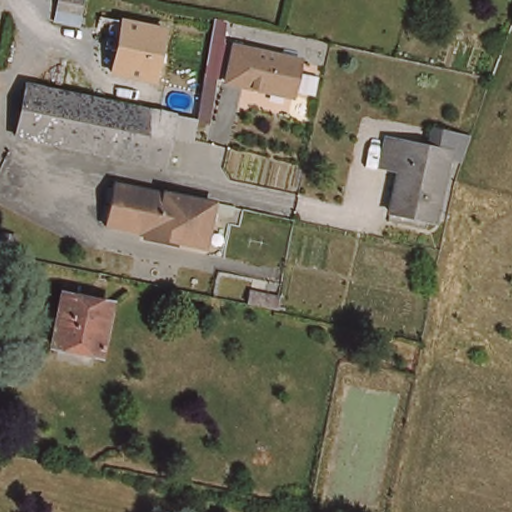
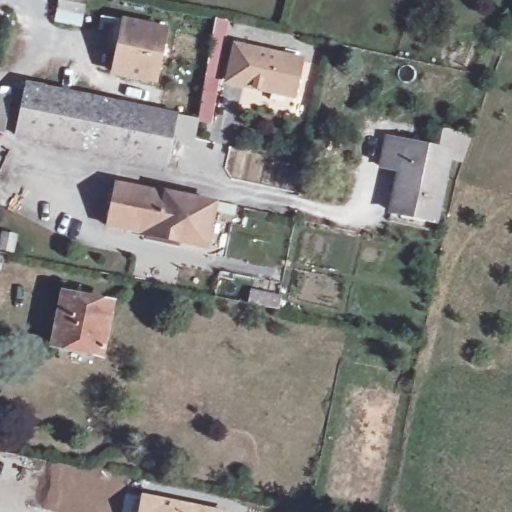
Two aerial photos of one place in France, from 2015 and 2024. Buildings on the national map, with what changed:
unchanged [(58,10),(60,0),(85,0),(82,14),(72,12),(70,23),(56,20),(58,10)]
unchanged [(159,85),(110,75),(121,19),(167,28),(159,85)]
unchanged [(210,123),(200,121),(200,117),(215,19),(227,21),(210,123)]
unchanged [(294,96),(227,82),(236,46),(302,61),(294,96)]
unchanged [(197,140),(173,136),(167,166),(17,136),(28,85),(177,116),(200,121),(197,140)]
unchanged [(462,156),(450,154),(436,216),(392,207),(400,165),(382,162),(388,134),(429,142),(433,124),(471,132),(462,156)]
unchanged [(121,185),(172,195),(193,199),(217,204),(218,202),(242,207),(240,216),(219,211),(211,247),(147,235),(148,234),(112,226),(121,185)]
unchanged [(1,271),(0,271),(0,256),(3,256),(1,271)]
unchanged [(102,355),(53,345),(63,295),(64,296),(66,285),(80,287),(77,298),(112,305),(102,355)]
unchanged [(280,297),(277,310),(250,303),(252,292),(280,297)]
new [(142,495),(227,512),(139,512),(142,495)]

